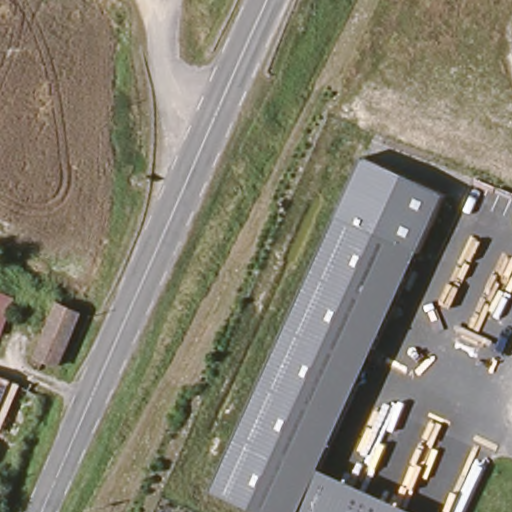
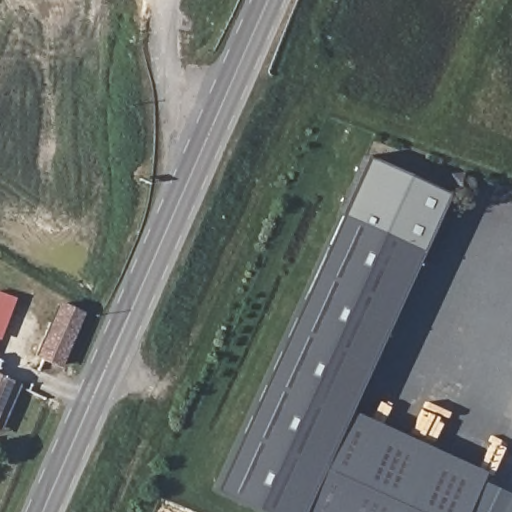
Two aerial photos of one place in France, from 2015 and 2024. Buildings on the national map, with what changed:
unchanged [(366,159),(447,195),(348,412),(322,470),(408,512),(260,512),(215,491),(366,159)]
unchanged [(0,294),(19,301),(0,347),(0,294)]
unchanged [(61,367),(47,359),(68,312),(83,314),(61,367)]
unchanged [(0,409),(0,384),(10,388),(0,409)]
new [(348,412),(486,477),(482,486),(512,500),(512,512),(408,512),(322,470),(348,412)]

